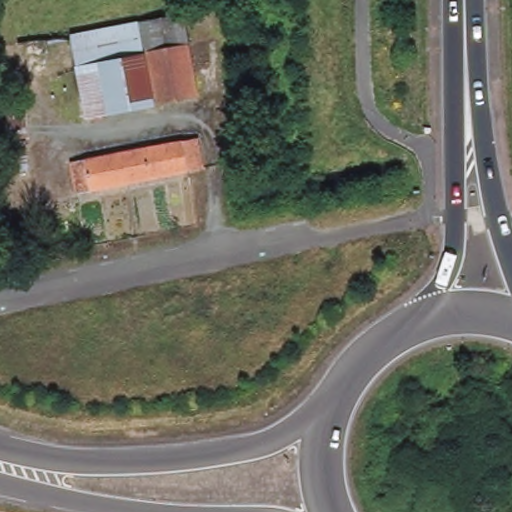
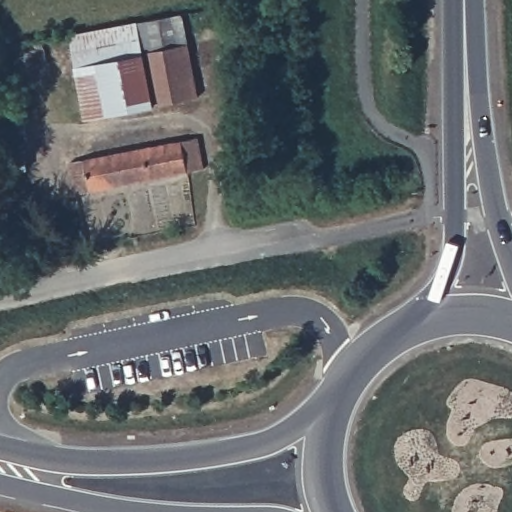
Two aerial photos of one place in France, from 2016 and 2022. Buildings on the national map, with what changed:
unchanged [(153,59),(152,52),(77,67),(71,37),(184,15),(191,52),(153,59)]
unchanged [(77,67),(152,52),(153,59),(162,105),(87,120),(78,75),(77,67)]
unchanged [(200,98),(162,105),(153,59),(191,52),(200,98)]
unchanged [(195,139),(202,170),(74,195),(68,161),(195,139)]

